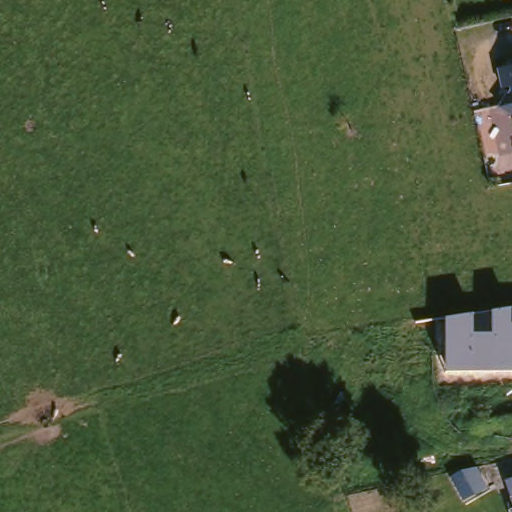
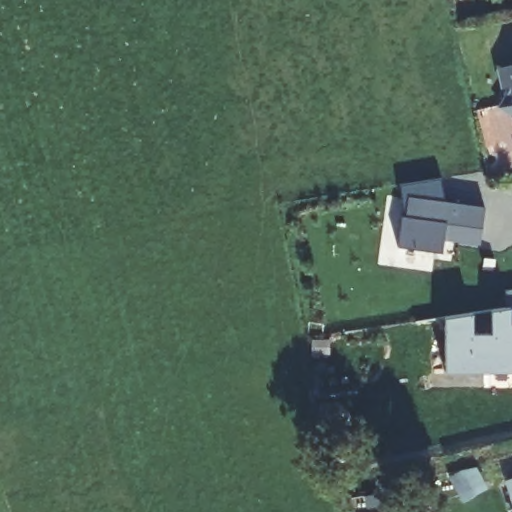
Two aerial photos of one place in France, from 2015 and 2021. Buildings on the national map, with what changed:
unchanged [(506,111),(495,65),(512,61),(512,109),(506,111)]
new [(400,197),(398,185),(432,180),(443,178),(446,201),(486,207),(479,245),(443,239),(441,252),(397,245),(401,215),(400,197)]
unchanged [(447,371),(447,316),(472,312),(472,334),(492,333),(492,311),(512,308),(512,371),(447,371)]
unchanged [(505,482),(512,480),(512,503),(505,482)]
unchanged [(512,508),(512,512),(510,512),(509,509),(512,508)]

